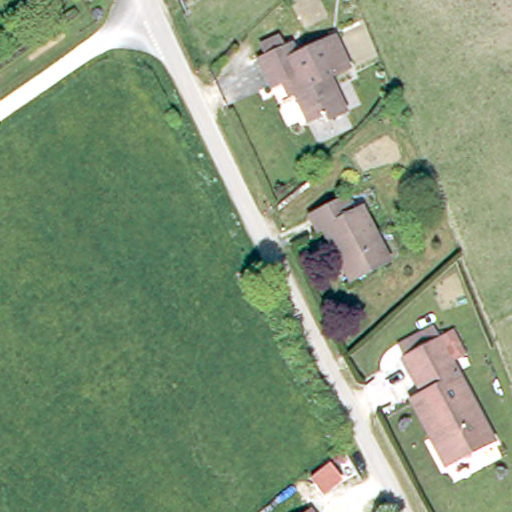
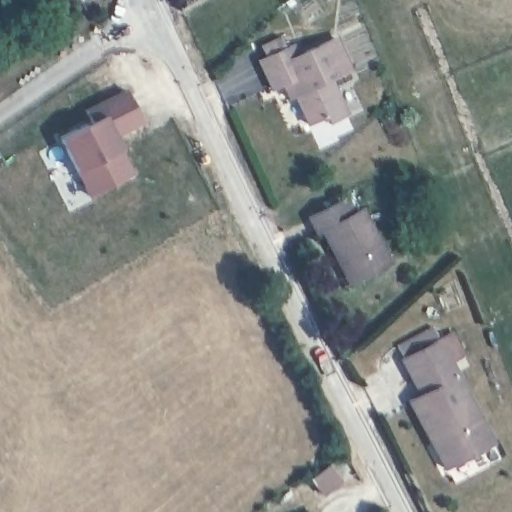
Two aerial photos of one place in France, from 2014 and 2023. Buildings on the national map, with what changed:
unchanged [(334,123),(330,117),(313,125),(294,82),(277,90),(263,60),(270,57),(266,47),(284,39),(289,49),(296,45),(301,55),(339,39),(353,68),(334,77),(351,114),(334,123)]
new [(123,87),(141,124),(113,137),(118,148),(130,174),(85,196),(74,174),(56,137),(87,122),(82,107),(123,87)]
unchanged [(343,261),(327,231),(323,233),(314,217),(348,200),(356,215),(365,210),(393,263),(361,279),(354,282),(343,261)]
unchanged [(469,355),(456,362),(498,442),(449,467),(437,444),(443,441),(420,397),(426,395),(407,359),(458,332),(469,355)]

